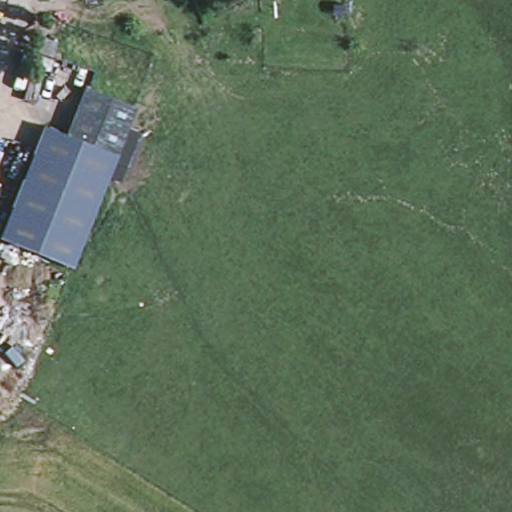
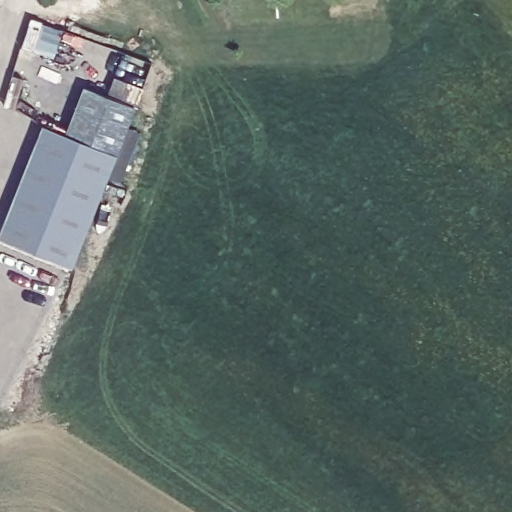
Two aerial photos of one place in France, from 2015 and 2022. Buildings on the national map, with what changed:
unchanged [(67,134),(85,86),(133,104),(72,267),(0,237),(0,236),(42,125),(67,134)]

